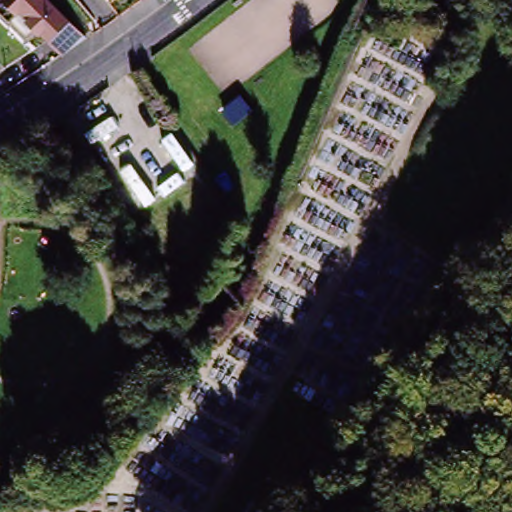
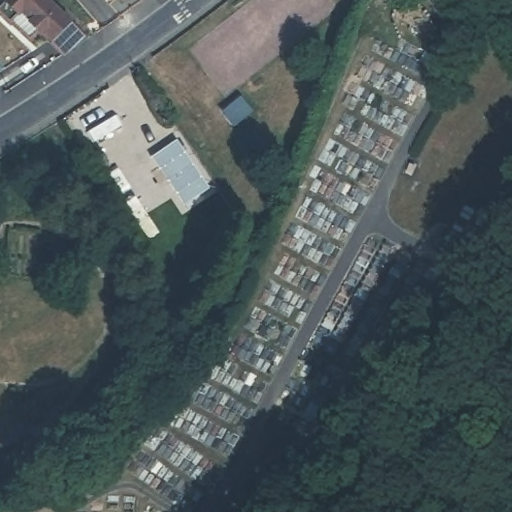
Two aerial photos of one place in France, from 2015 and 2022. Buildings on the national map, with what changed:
unchanged [(35,46),(0,12),(0,11),(9,2),(6,0),(39,0),(25,16),(44,36),(35,46)]
unchanged [(44,36),(25,16),(39,0),(48,0),(92,41),(71,55),(67,58),(44,36)]
new [(177,139),(210,187),(185,204),(154,155),(177,139)]
unchanged [(94,472),(80,486),(71,478),(86,464),(94,472)]

